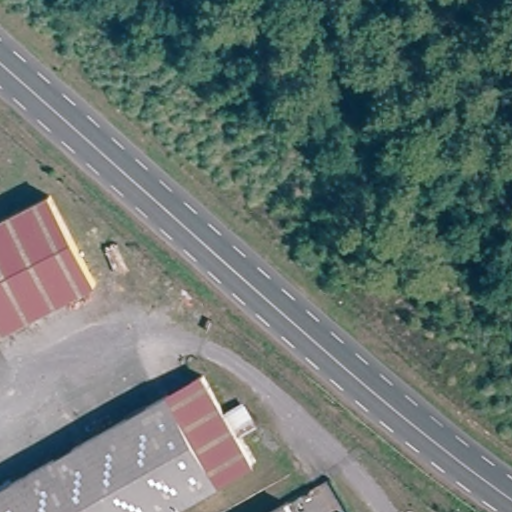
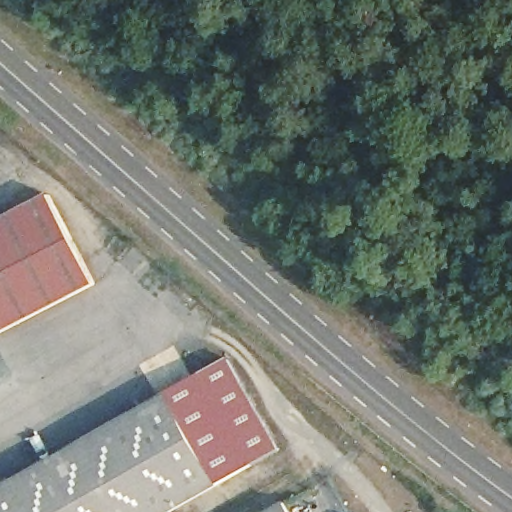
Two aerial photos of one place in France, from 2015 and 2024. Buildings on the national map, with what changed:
unchanged [(41,188),(90,276),(83,280),(0,326),(0,212),(2,210),(41,188)]
new [(201,380),(199,374),(229,356),(280,449),(251,470),(201,380)]
unchanged [(179,512),(0,512),(0,488),(201,380),(251,470),(179,512)]
unchanged [(288,512),(269,512),(283,503),(288,512)]

